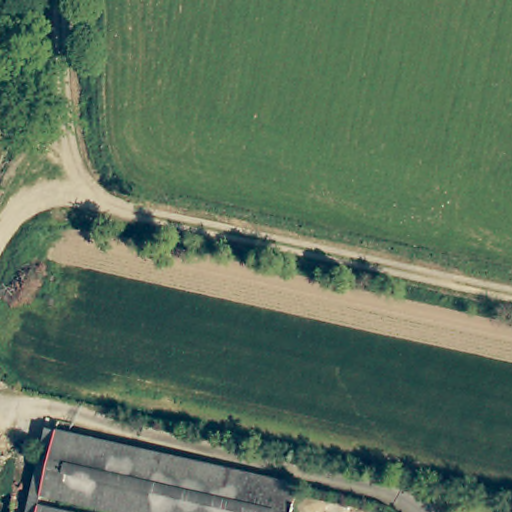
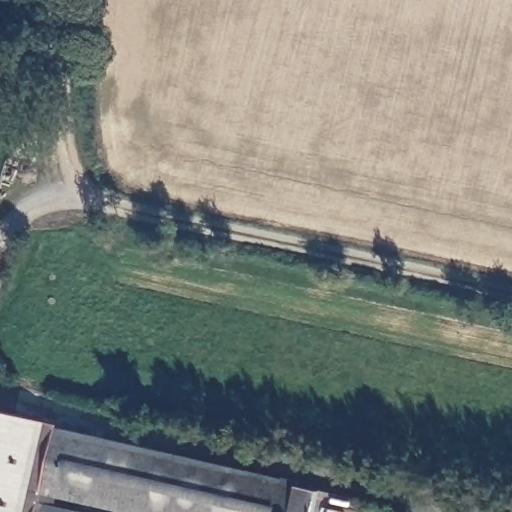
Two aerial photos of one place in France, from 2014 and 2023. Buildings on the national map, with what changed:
new [(45,494),(60,498),(59,501),(58,508),(42,505),(41,512),(0,512),(0,411),(60,424),(59,430),(58,433),(45,494)]
unchanged [(58,433),(59,430),(300,484),(294,512),(127,512),(45,494),(58,433)]
unchanged [(75,512),(41,512),(42,505),(75,512)]

